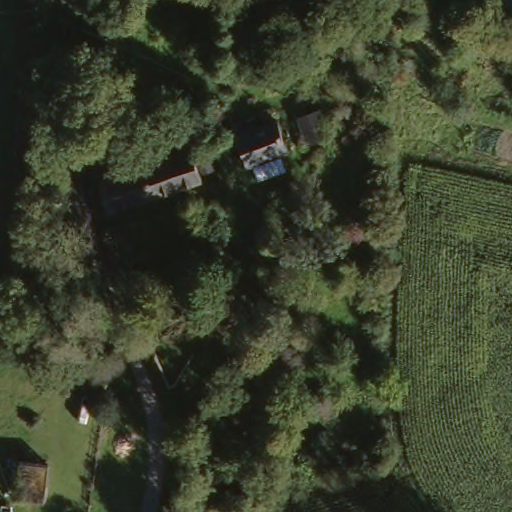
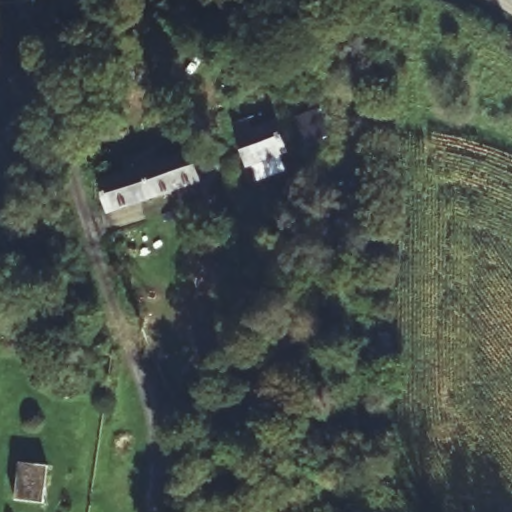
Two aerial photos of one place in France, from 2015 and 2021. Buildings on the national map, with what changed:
unchanged [(288,149),(249,161),(239,130),(278,116),(288,149)]
unchanged [(96,176),(123,167),(119,155),(153,145),(157,155),(193,145),(201,179),(106,212),(96,176)]
unchanged [(19,465),(46,466),(44,501),(16,497),(19,465)]

